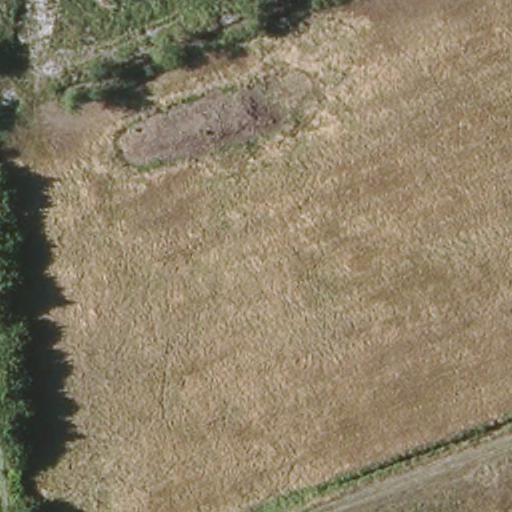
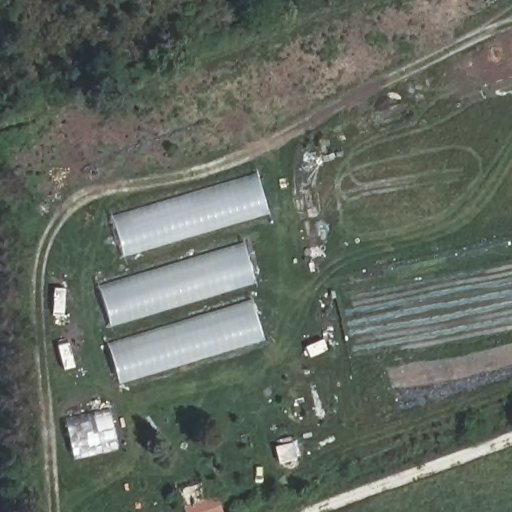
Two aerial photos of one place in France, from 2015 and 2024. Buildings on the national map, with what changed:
new [(114,221),(257,176),(267,210),(124,254),(114,221)]
new [(102,291),(245,247),(255,280),(111,323),(102,291)]
new [(110,346),(253,302),(265,338),(119,382),(110,346)]
new [(110,412),(118,446),(74,458),(66,421),(110,412)]

